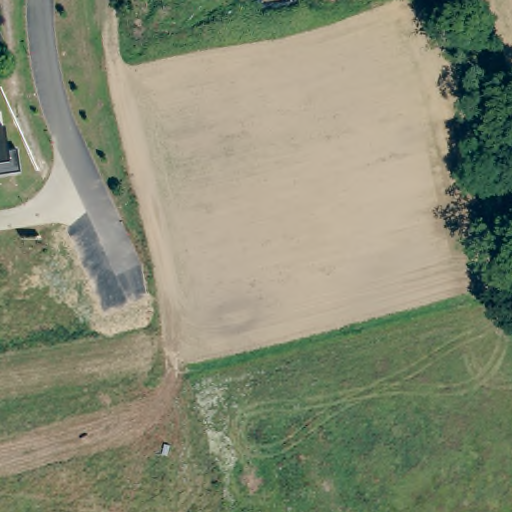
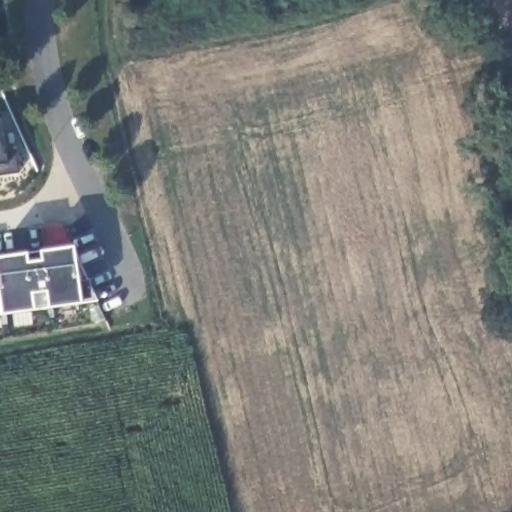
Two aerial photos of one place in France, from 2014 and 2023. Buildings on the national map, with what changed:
unchanged [(6,160),(14,160),(15,173),(0,175),(0,129),(2,129),(6,160)]
new [(76,255),(97,301),(0,315),(0,256),(72,246),(76,255)]

